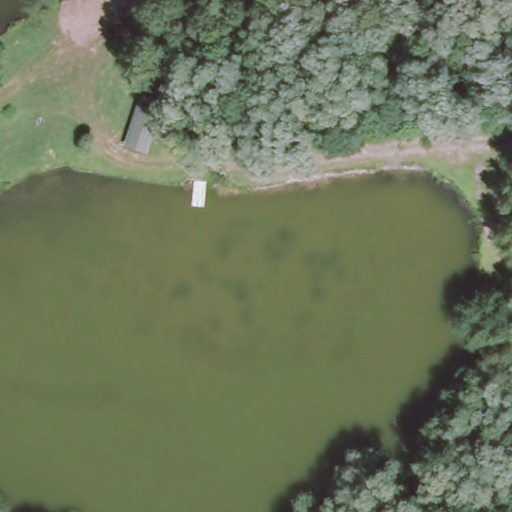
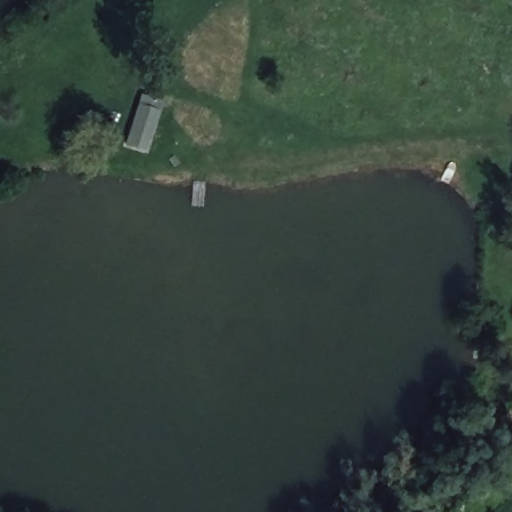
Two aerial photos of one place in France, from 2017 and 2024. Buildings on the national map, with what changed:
unchanged [(120,151),(136,103),(161,109),(143,151),(120,151)]

